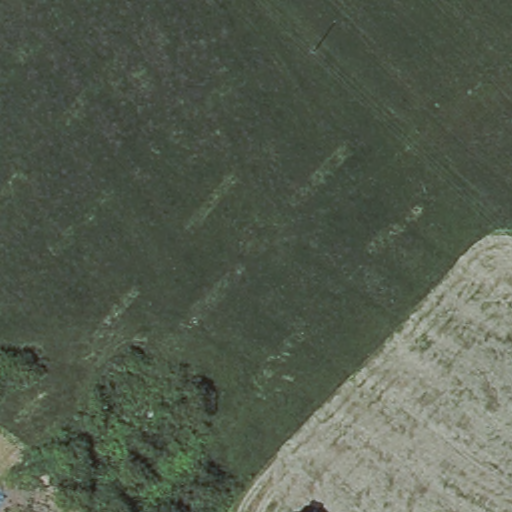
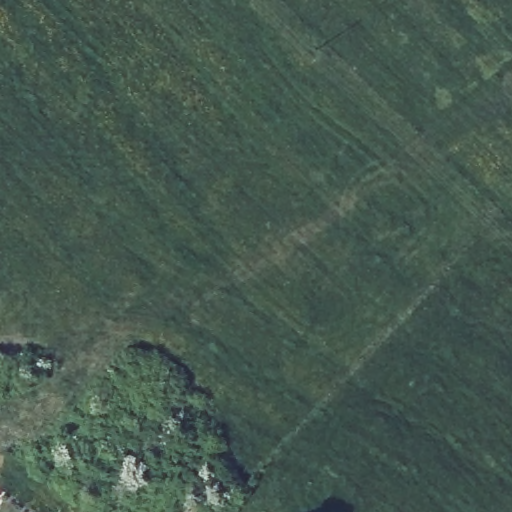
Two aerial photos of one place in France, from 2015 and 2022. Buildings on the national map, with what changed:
[]

